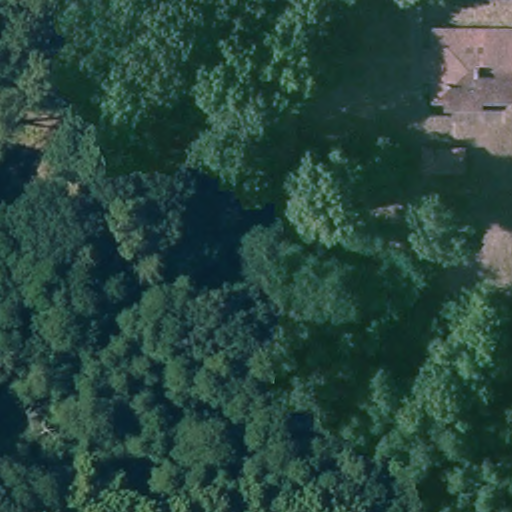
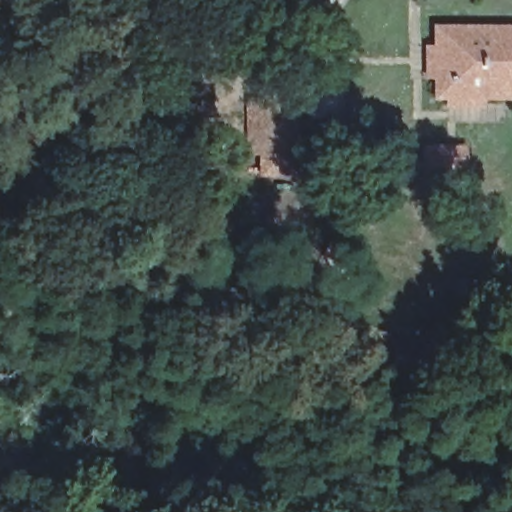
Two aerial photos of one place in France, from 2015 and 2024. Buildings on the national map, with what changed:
unchanged [(512,26),(512,114),(436,114),(436,26),(512,26)]
unchanged [(278,172),(278,140),(280,80),(314,80),(313,172),(278,172)]
unchanged [(462,170),(425,171),(424,149),(463,148),(462,170)]

